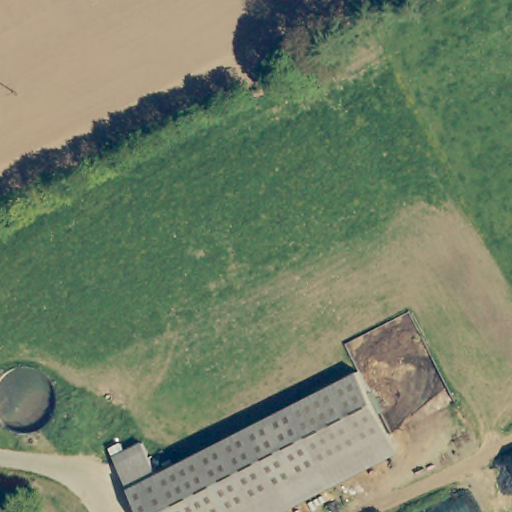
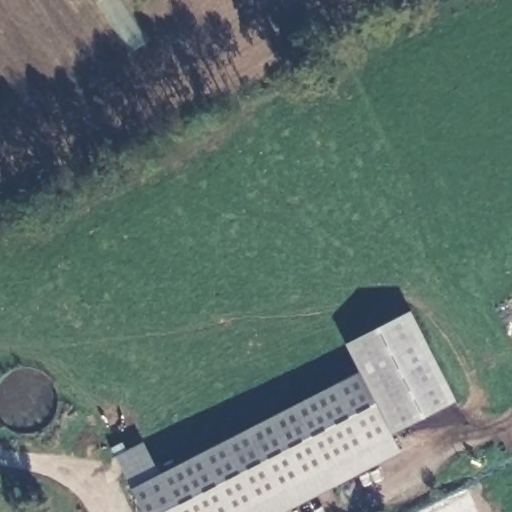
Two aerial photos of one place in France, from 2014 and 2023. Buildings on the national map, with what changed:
new [(365,375),(349,342),(411,312),(457,401),(394,432),(365,375)]
unchanged [(298,408),(365,375),(397,437),(330,472),(298,408)]
unchanged [(298,408),(330,472),(250,512),(148,512),(137,491),(162,477),(298,408)]
unchanged [(397,437),(406,453),(289,512),(250,512),(330,472),(397,437)]
unchanged [(137,491),(117,451),(128,446),(132,453),(146,447),(162,477),(137,491)]

